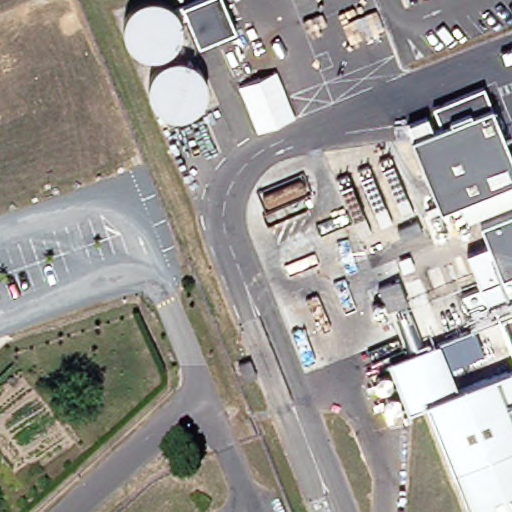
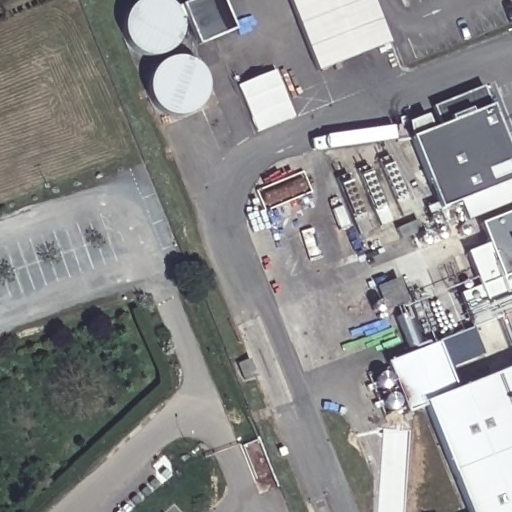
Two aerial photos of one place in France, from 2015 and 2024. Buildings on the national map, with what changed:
unchanged [(178,8),(199,0),(222,0),(237,34),(196,48),(178,8)]
new [(290,0),(371,0),(389,45),(318,72),(290,0)]
unchanged [(295,119),(257,132),(238,84),(275,70),(295,119)]
unchanged [(442,128),(435,109),(490,87),(512,142),(512,205),(472,221),(465,202),(442,212),(414,140),(410,125),(429,117),(435,131),(442,128)]
unchanged [(480,330),(466,295),(485,287),(472,254),(491,246),(483,227),(512,215),(512,317),(480,330)]
unchanged [(424,232),(402,241),(398,229),(419,221),(424,232)]
unchanged [(470,319),(457,325),(447,297),(460,292),(470,319)]
unchanged [(453,390),(426,401),(422,402),(422,405),(404,412),(384,363),(407,354),(435,343),(453,390)]
unchanged [(465,512),(422,405),(422,402),(426,401),(453,390),(512,366),(512,512),(465,512)]

